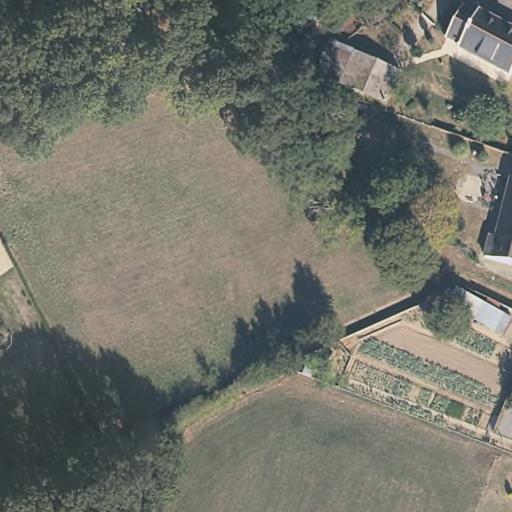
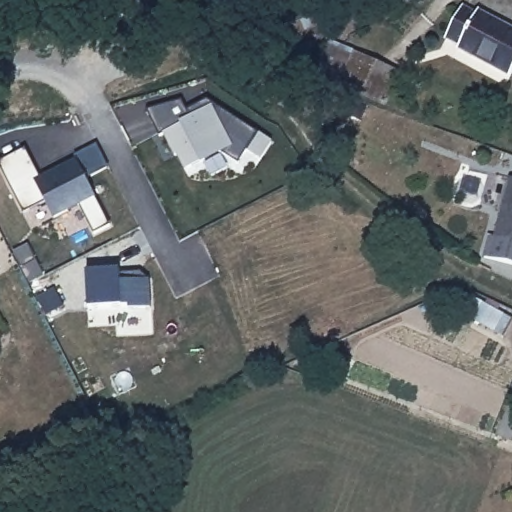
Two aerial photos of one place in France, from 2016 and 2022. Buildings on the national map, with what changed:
unchanged [(476,7),(512,29),(512,79),(455,49),(458,42),(441,33),(458,3),(474,13),(476,7)]
unchanged [(391,59),(376,94),(330,75),(344,43),(391,59)]
new [(260,159),(247,151),(239,164),(220,152),(184,169),(177,154),(173,155),(163,134),(159,136),(147,110),(182,102),(186,110),(207,100),(271,142),(260,159)]
new [(94,234),(79,206),(54,219),(45,203),(24,213),(0,165),(0,161),(26,149),(40,177),(76,160),(110,226),(94,234)]
unchanged [(493,233),(499,234),(512,186),(512,266),(487,257),(493,233)]
new [(150,307),(121,306),(87,308),(85,272),(118,270),(140,270),(149,279),(150,307)]
unchanged [(455,281),(512,312),(512,318),(500,334),(443,300),(455,281)]

